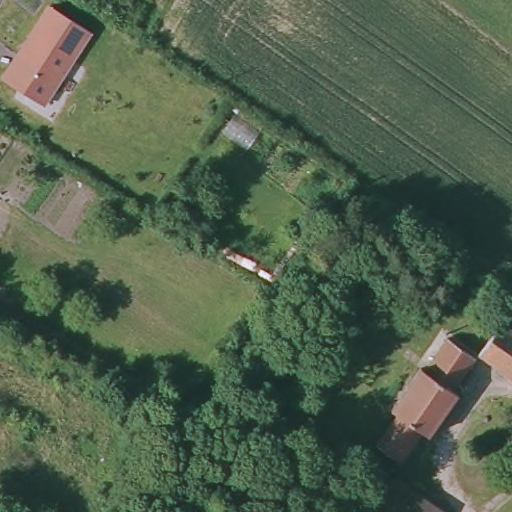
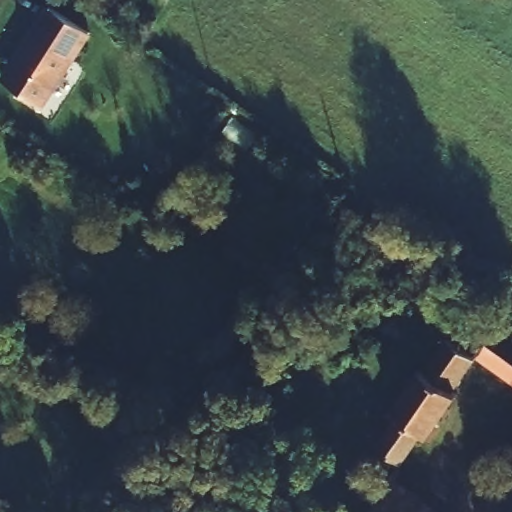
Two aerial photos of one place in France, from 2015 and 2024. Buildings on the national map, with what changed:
unchanged [(92,34),(45,106),(5,80),(52,8),(92,34)]
unchanged [(512,330),(512,375),(478,351),(493,331),(500,321),(512,330)]
unchanged [(452,385),(457,389),(428,432),(422,428),(388,479),(385,483),(367,471),(375,460),(383,448),(373,441),(376,437),(388,420),(395,410),(387,406),(405,380),(417,362),(422,366),(435,347),(440,340),(445,333),(473,353),(452,385)]
unchanged [(388,479),(437,512),(385,512),(371,503),(385,483),(388,479)]
unchanged [(385,512),(365,512),(371,503),(385,512)]

